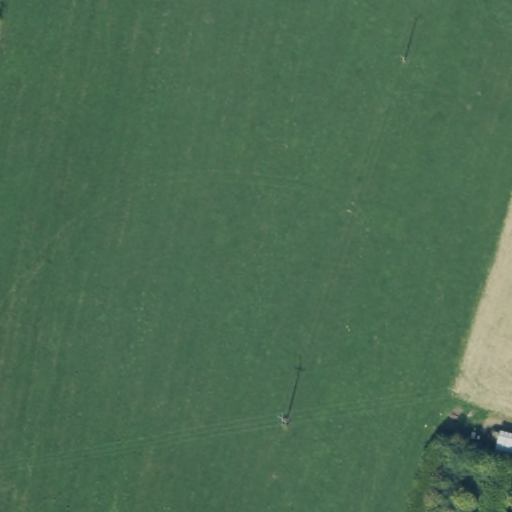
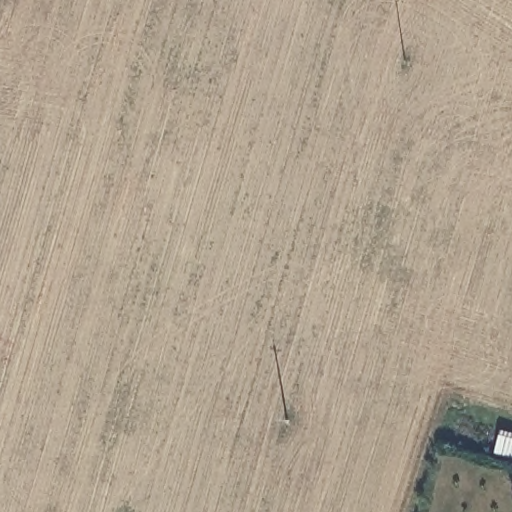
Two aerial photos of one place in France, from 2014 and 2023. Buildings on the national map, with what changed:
unchanged [(512,460),(495,455),(500,437),(512,441),(512,460)]

